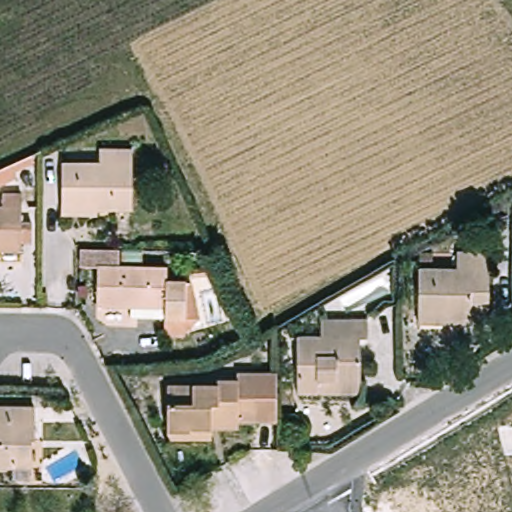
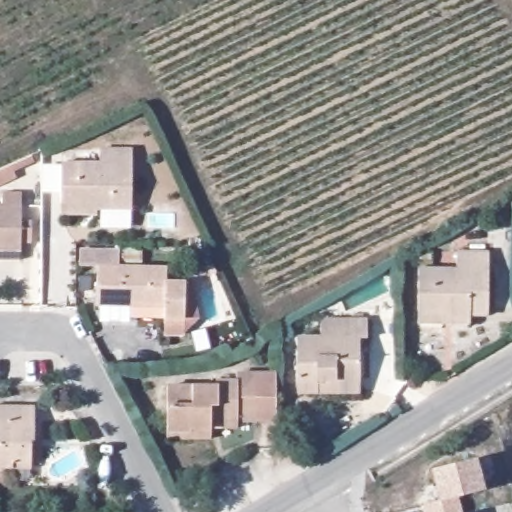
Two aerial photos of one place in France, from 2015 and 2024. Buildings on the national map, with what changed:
unchanged [(66,217),(65,199),(65,164),(102,164),(102,148),(138,147),(137,206),(107,205),(107,218),(66,217)]
unchanged [(31,250),(0,249),(0,208),(31,207),(31,250)]
unchanged [(421,329),(420,315),(417,269),(459,268),(458,252),(491,251),(496,318),(479,319),(479,327),(421,329)]
unchanged [(136,309),(105,310),(104,271),(77,271),(77,252),(124,252),(125,270),(170,270),(171,285),(191,285),(193,337),(173,337),(172,318),(137,318),(136,309)]
unchanged [(324,393),(298,393),(296,342),(323,340),(323,326),(371,323),(371,338),(362,338),(365,376),(365,392),(324,393)]
unchanged [(224,424),(224,435),(176,434),(176,424),(177,382),(223,383),(223,378),(247,377),(248,369),(283,370),(288,418),(246,417),(247,425),(224,424)]
unchanged [(19,465),(0,465),(0,406),(42,409),(40,437),(36,437),(36,454),(37,465),(19,465)]
new [(439,501),(431,470),(477,459),(485,491),(458,497),(461,512),(425,512),(424,505),(439,501)]

